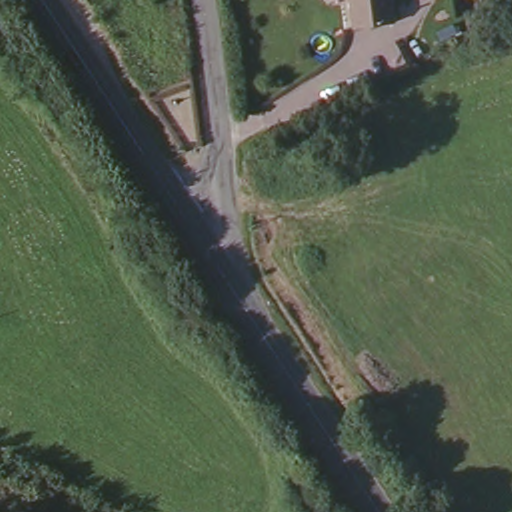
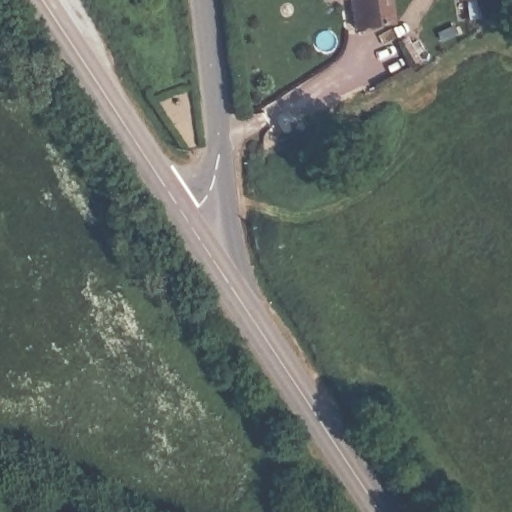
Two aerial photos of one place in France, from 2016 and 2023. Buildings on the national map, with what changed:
unchanged [(358,24),(355,0),(394,0),(397,20),(358,24)]

